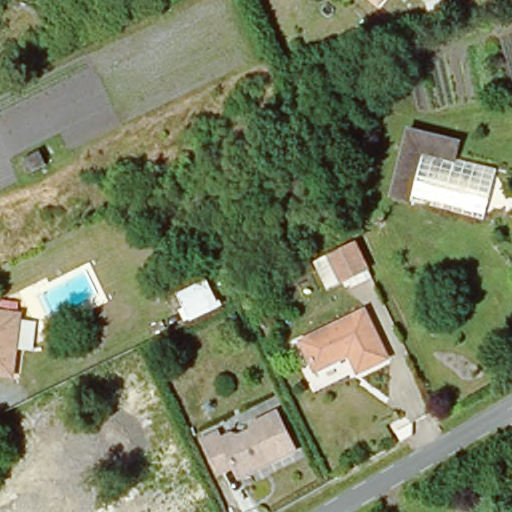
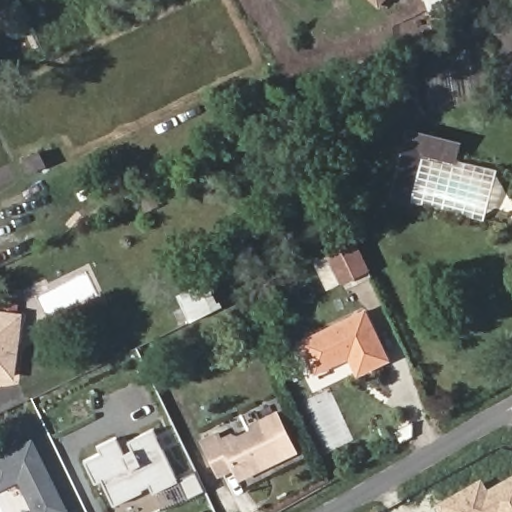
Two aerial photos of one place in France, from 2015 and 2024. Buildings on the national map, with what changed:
unchanged [(372,0),(388,0),(382,8),(372,0)]
unchanged [(454,164),(419,156),(407,202),(393,199),(410,134),(459,147),(454,164)]
unchanged [(454,164),(492,174),(480,222),(407,203),(407,202),(419,156),(454,164)]
unchanged [(372,271),(343,285),(328,254),(357,240),(372,271)]
demolished [(115,329),(142,316),(154,339),(139,346),(126,352),(115,329)]
unchanged [(310,376),(298,353),(363,319),(385,360),(355,375),(347,358),(310,376)]
unchanged [(0,375),(0,323),(10,325),(2,376),(0,375)]
unchanged [(276,423),(294,459),(222,494),(201,453),(226,441),(229,446),(276,423)]
new [(187,498),(180,482),(155,494),(152,489),(115,506),(103,481),(97,484),(87,461),(100,455),(97,448),(119,438),(123,445),(156,429),(180,480),(197,471),(205,490),(187,498)]
new [(0,496),(0,458),(35,442),(69,512),(33,512),(20,487),(0,496)]
new [(489,490),(512,478),(512,512),(439,512),(436,507),(482,479),(489,490)]

